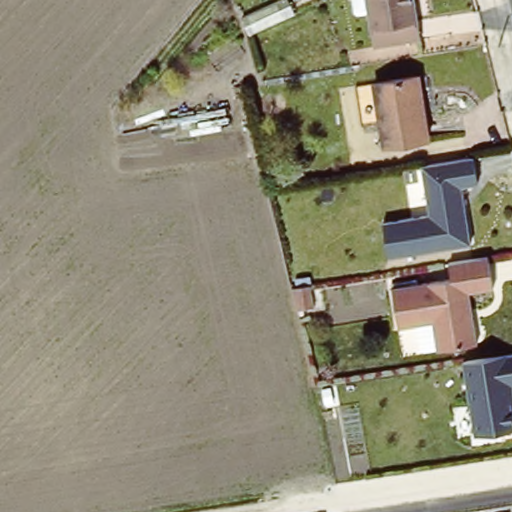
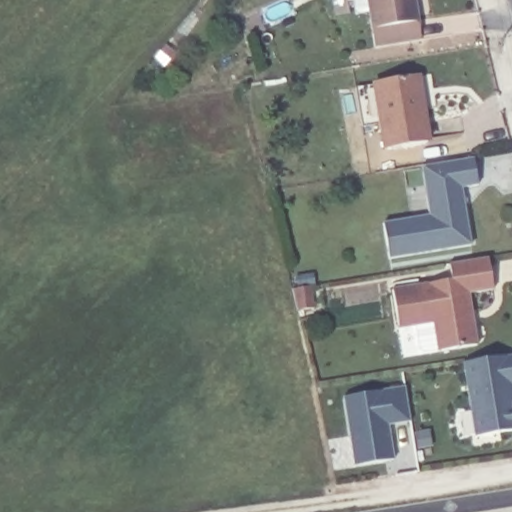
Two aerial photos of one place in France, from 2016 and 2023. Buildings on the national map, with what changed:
unchanged [(422,34),(376,45),(370,10),(357,12),(354,0),(416,0),(422,34)]
unchanged [(386,151),(381,125),(362,129),(356,89),(419,79),(429,144),(386,151)]
unchanged [(429,213),(422,164),(474,156),(479,182),(462,185),(470,246),(385,260),(381,221),(429,213)]
unchanged [(495,285),(471,290),(474,306),(470,307),(472,317),(476,316),(480,341),(440,349),(435,320),(400,326),(392,287),(452,276),(449,259),(489,253),(495,285)]
unchanged [(310,285),(314,307),(297,309),(291,288),(310,285)]
unchanged [(511,383),(512,392),(512,401),(509,402),(512,421),(512,429),(474,435),(461,363),(512,355),(512,383),(511,383)]
new [(387,426),(392,459),(354,465),(342,395),(406,385),(411,422),(387,426)]

